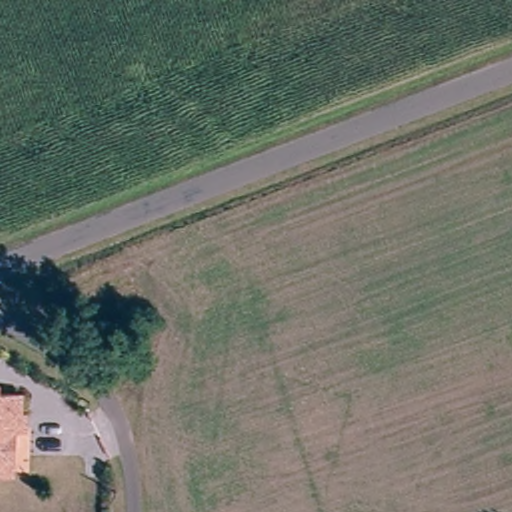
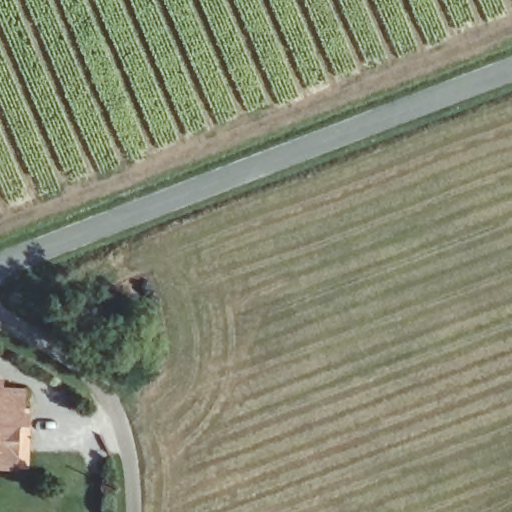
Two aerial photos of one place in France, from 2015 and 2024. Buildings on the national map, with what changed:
unchanged [(0,470),(0,393),(21,395),(19,426),(14,426),(12,458),(11,470),(0,470)]

